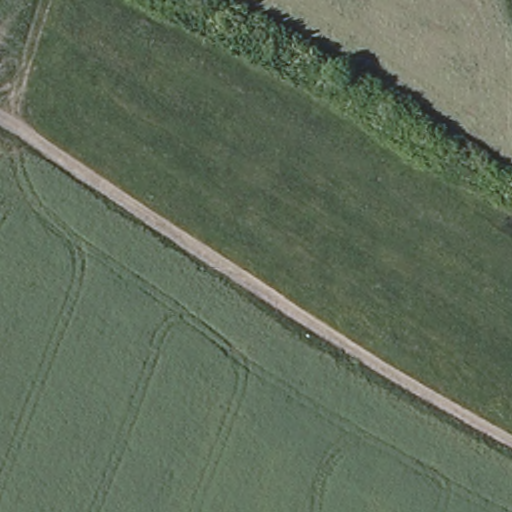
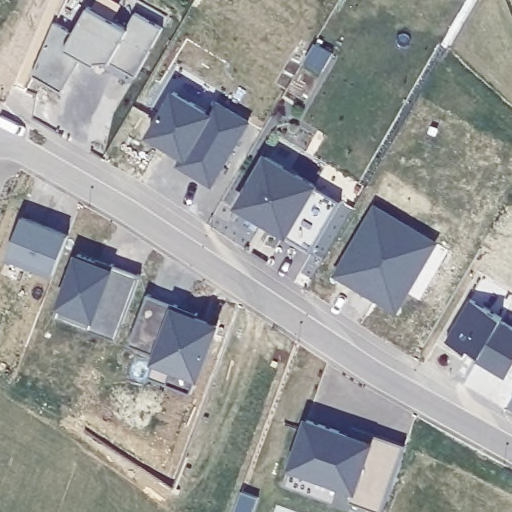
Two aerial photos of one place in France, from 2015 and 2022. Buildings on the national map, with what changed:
new [(136,75),(112,57),(111,61),(100,60),(95,64),(81,57),(62,91),(31,73),(54,21),(77,30),(89,6),(128,27),(135,12),(162,26),(136,75)]
new [(315,42),(332,52),(322,70),(305,60),(315,42)]
new [(208,121),(216,107),(246,127),(211,191),(175,170),(180,161),(143,141),(169,95),(208,121)]
new [(318,182),(317,186),(341,202),(312,254),(287,237),(234,206),(264,152),(318,182)]
new [(448,249),(420,298),(406,290),(396,307),(377,296),(380,291),(373,287),(372,290),(339,271),(376,207),(448,249)]
new [(70,232),(54,273),(6,257),(22,215),(70,232)]
new [(55,315),(56,311),(78,252),(98,260),(97,262),(110,267),(111,262),(141,273),(121,327),(116,338),(55,315)]
new [(97,257),(111,262),(110,267),(97,262),(98,260),(96,259),(97,257)]
new [(175,303),(198,312),(196,317),(217,324),(193,390),(151,375),(160,352),(131,342),(147,293),(175,303)]
new [(501,317),(512,323),(512,368),(507,376),(479,360),(480,354),(470,347),(467,352),(445,338),(468,297),(501,317)]
new [(350,435),(352,426),(403,444),(381,511),(353,501),(350,507),(334,502),(341,482),(292,465),(307,421),(350,435)]

